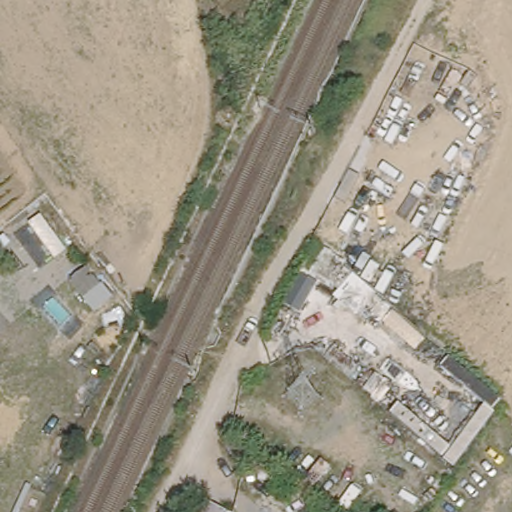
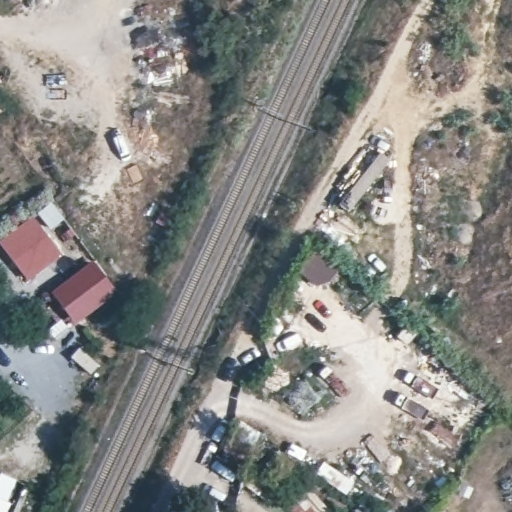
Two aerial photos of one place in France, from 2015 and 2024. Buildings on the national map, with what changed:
new [(60,255),(28,279),(0,242),(0,237),(30,214),(60,255)]
new [(54,294),(59,290),(90,267),(112,295),(81,319),(75,323),(54,294)]
new [(137,319),(128,325),(115,307),(123,302),(137,319)]
new [(18,480),(3,512),(0,512),(0,477),(2,472),(8,475),(18,480)]
unchanged [(209,512),(187,512),(194,497),(209,512)]

